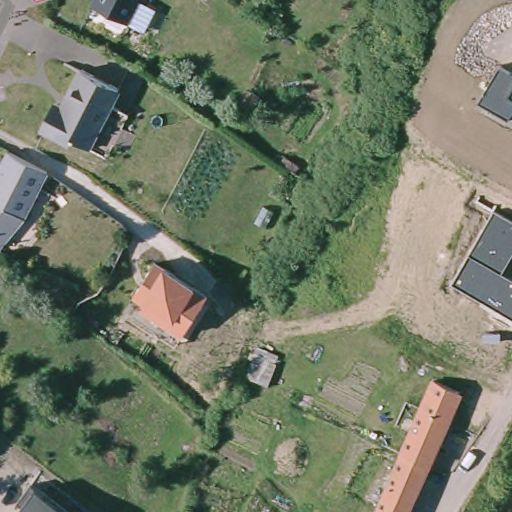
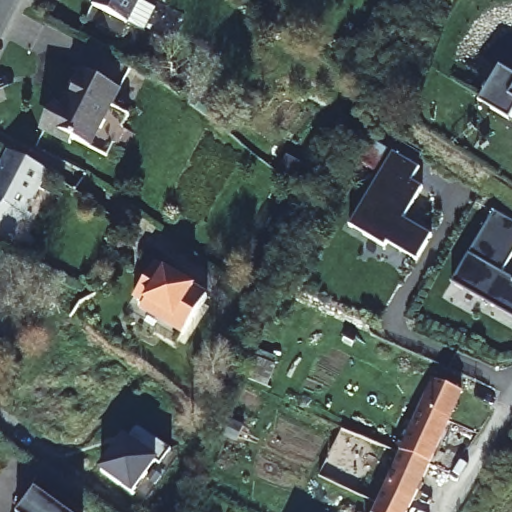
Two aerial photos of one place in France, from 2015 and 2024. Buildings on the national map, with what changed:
unchanged [(147,10),(139,5),(128,28),(93,11),(98,0),(152,0),(147,10)]
unchanged [(510,119),(480,101),(500,64),(512,71),(512,114),(510,119)]
unchanged [(56,105),(60,107),(79,70),(117,89),(88,146),(63,135),(61,139),(44,130),(56,105)]
unchanged [(40,170),(31,216),(1,252),(0,252),(0,154),(1,151),(40,170)]
new [(418,170),(409,185),(420,190),(401,221),(429,239),(414,263),(384,245),(381,250),(350,230),(394,158),(418,170)]
unchanged [(512,217),(512,256),(503,271),(512,276),(512,314),(453,281),(496,207),(512,217)]
unchanged [(184,335),(140,309),(144,302),(134,296),(155,261),(209,292),(184,335)]
unchanged [(438,380),(464,393),(448,427),(422,415),(438,380)]
unchanged [(388,485),(403,454),(422,415),(448,427),(445,433),(437,452),(431,465),(409,512),(376,512),(383,498),(388,485)]
new [(157,463),(133,495),(99,469),(125,435),(137,425),(168,450),(157,463)]
unchanged [(19,512),(36,486),(69,512),(19,512)]

